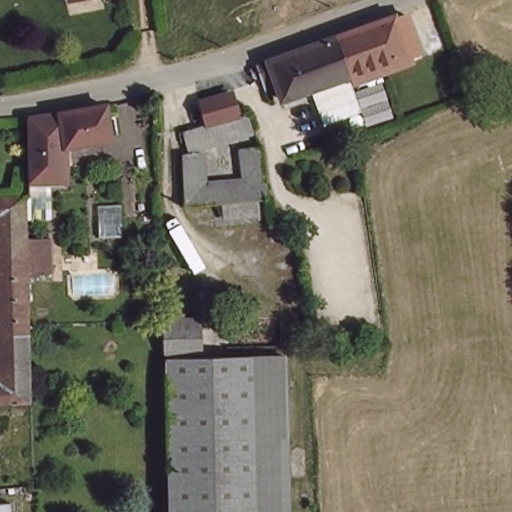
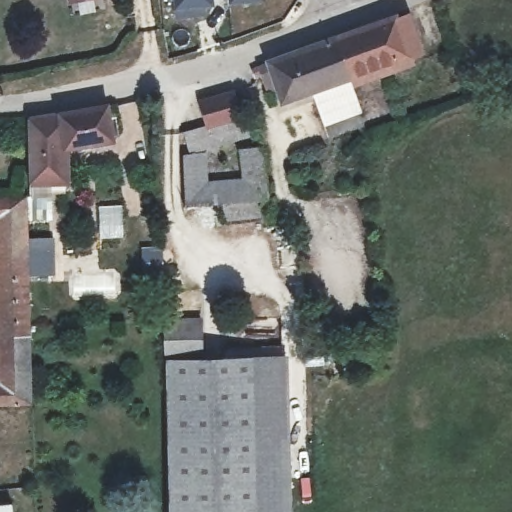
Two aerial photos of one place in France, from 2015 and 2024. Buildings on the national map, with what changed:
new [(204,7),(204,17),(174,20),(171,0),(265,0),(204,7)]
unchanged [(351,75),(282,99),(278,85),(268,89),(260,65),(305,48),(338,36),(395,16),(411,62),(385,71),(353,83),(351,75)]
unchanged [(200,96),(230,87),(236,111),(247,108),(252,124),(188,142),(183,126),(207,119),(200,96)]
unchanged [(65,148),(67,182),(30,182),(28,118),(43,116),(107,105),(112,139),(65,148)]
unchanged [(200,147),(203,183),(250,179),(246,143),(262,141),(269,194),(260,195),(260,207),(225,210),(223,198),(185,201),(183,149),(200,147)]
unchanged [(31,397),(0,398),(0,192),(26,191),(31,397)]
unchanged [(52,269),(30,269),(30,238),(51,237),(52,269)]
unchanged [(201,313),(202,352),(285,351),(288,512),(169,512),(165,315),(165,314),(166,314),(201,313)]
unchanged [(14,512),(0,512),(0,500),(13,499),(14,512)]

